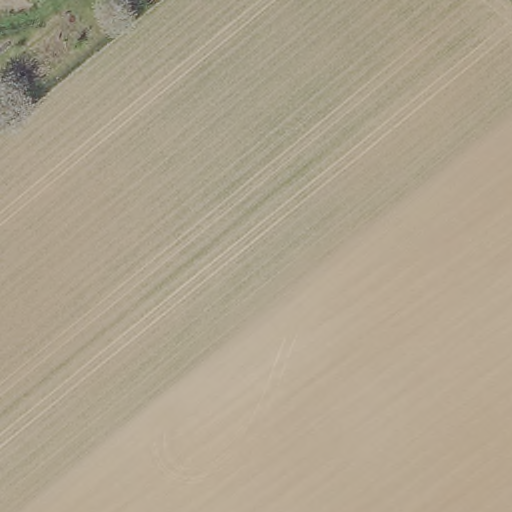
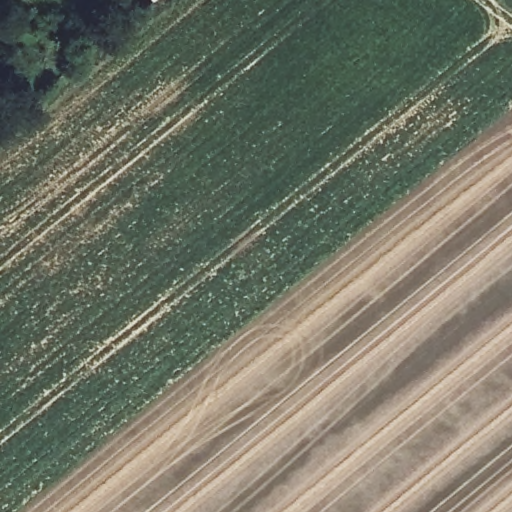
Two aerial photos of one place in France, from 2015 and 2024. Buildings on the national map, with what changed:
unchanged [(157,2),(155,0),(159,0),(157,2)]

